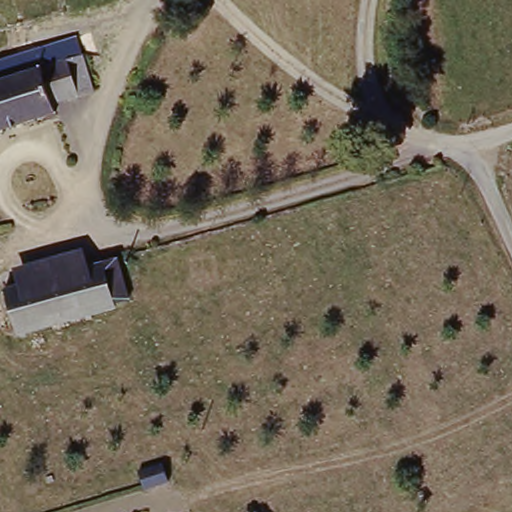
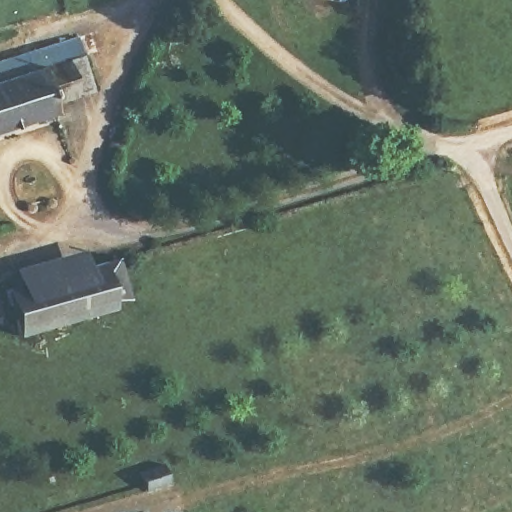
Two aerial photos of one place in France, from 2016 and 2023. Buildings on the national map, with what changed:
unchanged [(60,54),(78,47),(91,92),(56,104),(59,117),(0,136),(0,82),(61,62),(60,54)]
unchanged [(129,303),(115,306),(117,313),(19,338),(15,322),(5,287),(25,281),(116,256),(129,303)]
unchanged [(175,473),(155,494),(134,475),(155,455),(175,473)]

